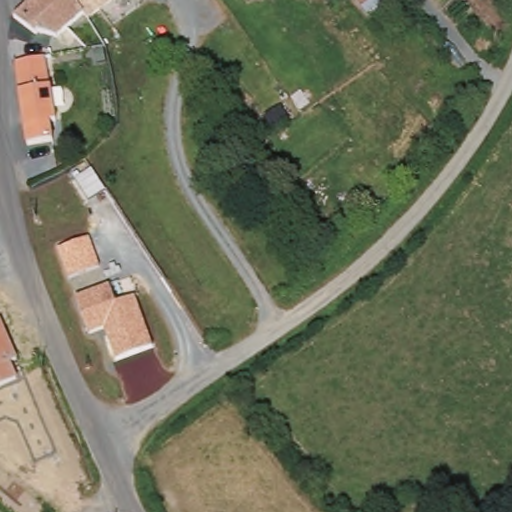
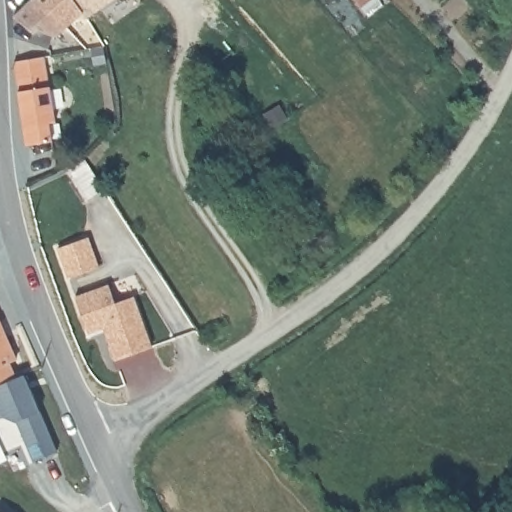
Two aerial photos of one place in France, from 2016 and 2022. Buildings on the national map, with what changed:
unchanged [(106,8),(94,17),(90,12),(73,25),(63,34),(44,30),(41,33),(21,14),(36,0),(116,0),(106,8)]
unchanged [(49,54),(60,118),(53,120),(56,137),(31,143),(16,59),(49,54)]
unchanged [(103,266),(71,278),(58,248),(90,236),(103,266)]
unchanged [(109,284),(120,306),(136,298),(156,345),(118,362),(103,327),(91,331),(76,295),(109,284)]
new [(13,357),(0,328),(0,317),(19,358),(8,364),(6,360),(13,357)]
unchanged [(6,360),(12,376),(0,382),(0,328),(13,357),(6,360)]
new [(14,379),(24,376),(41,412),(58,452),(35,461),(19,421),(6,416),(0,419),(0,382),(12,376),(14,379)]

